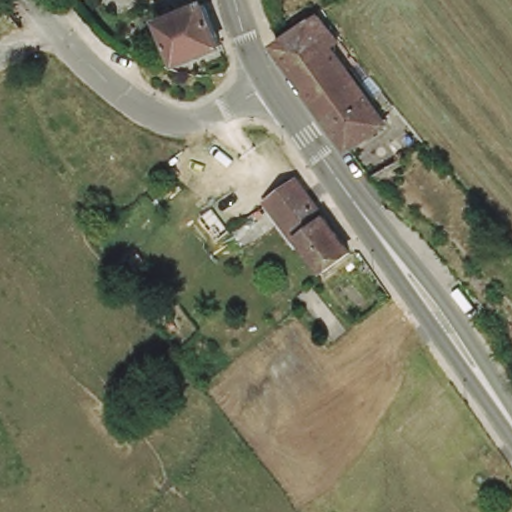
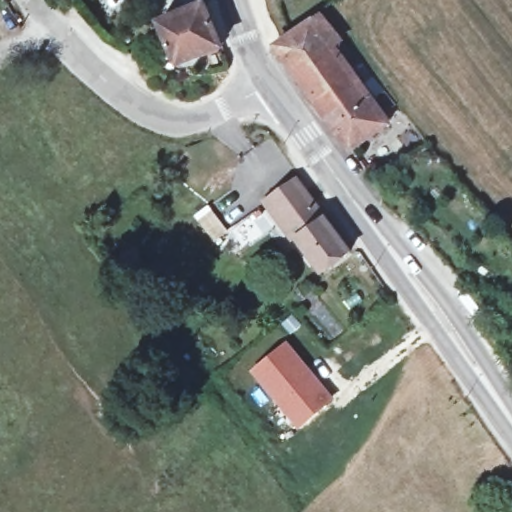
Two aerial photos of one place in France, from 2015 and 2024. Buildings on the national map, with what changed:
unchanged [(175,68),(156,27),(201,7),(219,49),(175,68)]
unchanged [(320,15),(344,43),(333,52),(388,126),(351,152),(277,48),(320,15)]
unchanged [(291,180),(344,251),(316,272),(262,202),(291,180)]
demolished [(250,236),(237,245),(231,237),(244,228),(250,236)]
new [(249,370),(286,341),(334,399),(297,428),(249,370)]

